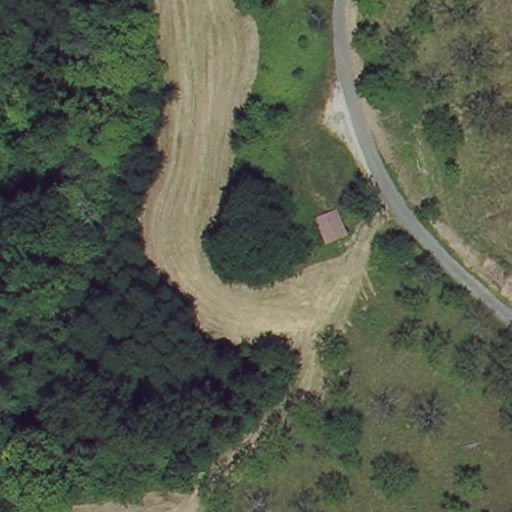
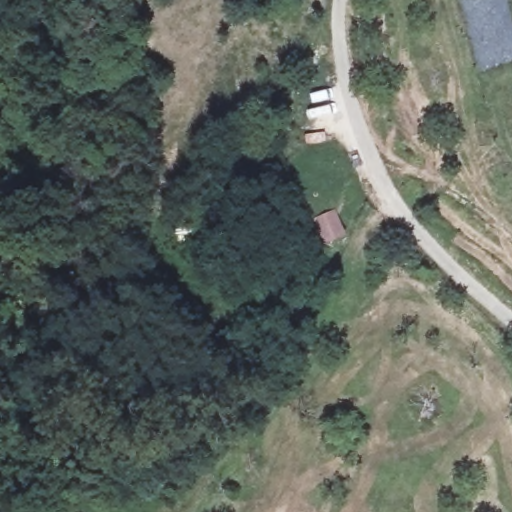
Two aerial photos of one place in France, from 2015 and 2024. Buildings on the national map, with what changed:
unchanged [(394,237),(408,244),(409,247),(399,264),(384,256),(394,237)]

